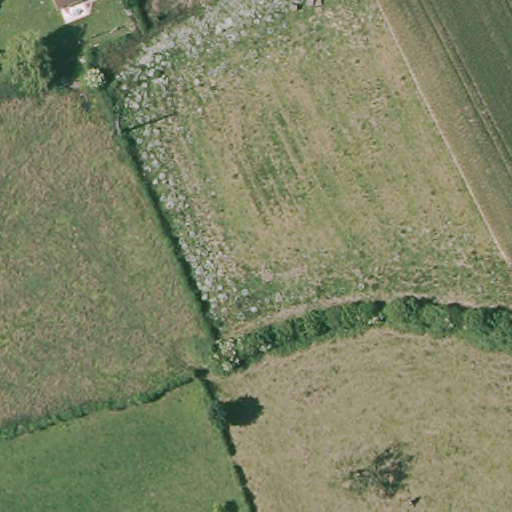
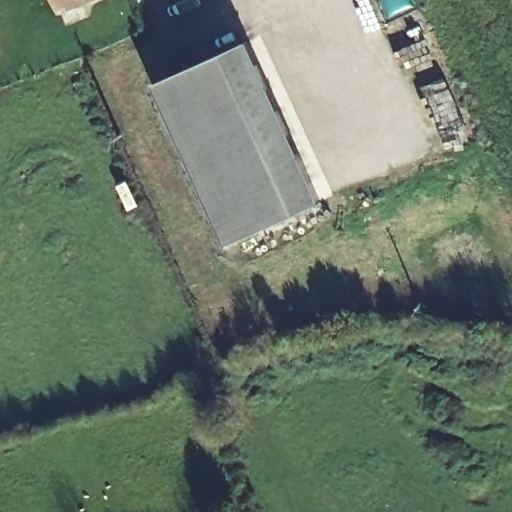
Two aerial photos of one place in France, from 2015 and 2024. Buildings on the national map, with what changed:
unchanged [(110,0),(57,17),(52,0),(110,0)]
new [(226,243),(153,83),(249,40),(322,198),(226,243)]

